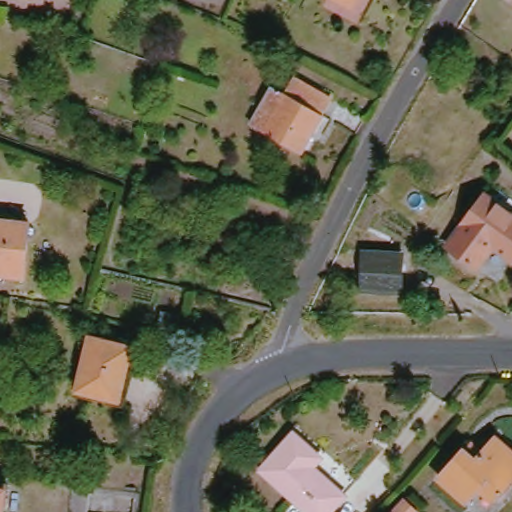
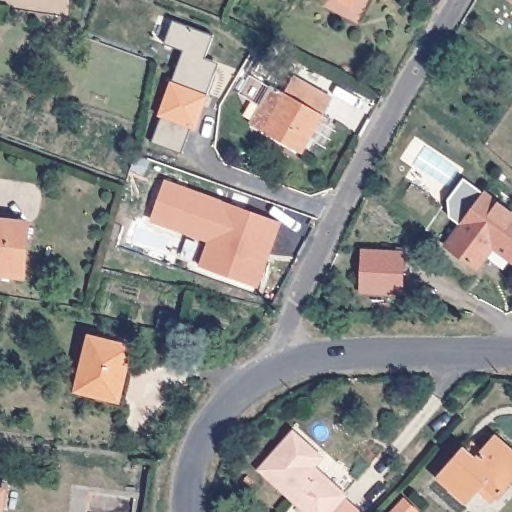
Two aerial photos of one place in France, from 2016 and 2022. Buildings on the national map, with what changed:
unchanged [(508,0),(512,0),(512,3),(508,0)]
new [(165,48),(173,25),(212,39),(206,61),(220,67),(197,133),(190,131),(182,158),(151,147),(162,120),(157,120),(183,54),(165,48)]
unchanged [(295,152),(257,131),(285,76),(324,97),(295,152)]
new [(256,287),(200,269),(208,242),(170,229),(171,223),(152,217),(163,184),(280,223),(268,255),(265,263),(256,287)]
unchanged [(489,244),(470,267),(439,241),(480,190),(511,215),(512,214),(512,256),(508,261),(489,244)]
unchanged [(0,275),(0,220),(25,223),(17,277),(0,275)]
unchanged [(401,293),(361,292),(362,249),(402,250),(401,293)]
unchanged [(115,396),(74,389),(82,337),(125,345),(115,396)]
unchanged [(309,512),(257,471),(290,433),(315,455),(310,462),(342,488),(323,512),(309,512)]
unchanged [(485,505),(470,492),(459,504),(432,479),(458,451),(469,461),(490,437),(512,458),(512,477),(485,505)]
unchanged [(0,505),(0,487),(4,488),(0,505)]

